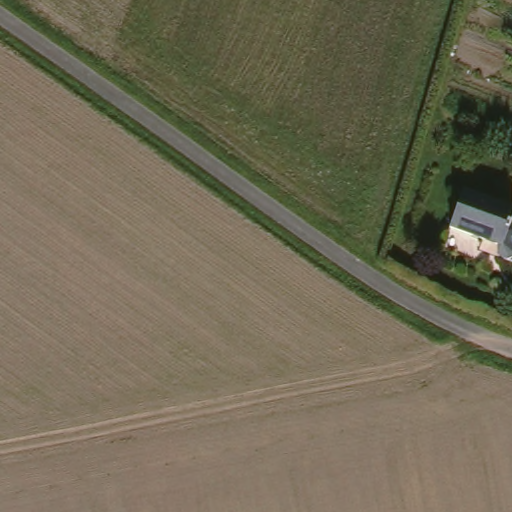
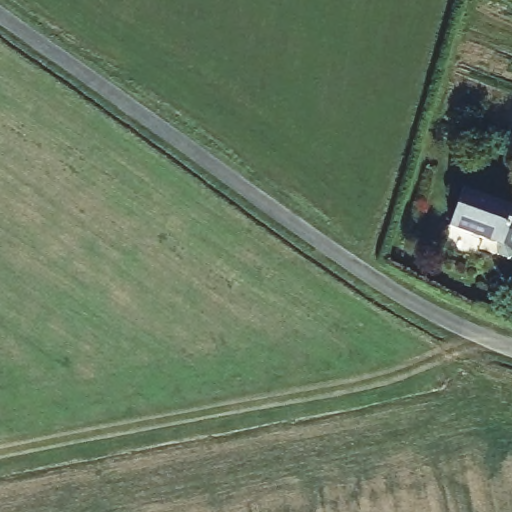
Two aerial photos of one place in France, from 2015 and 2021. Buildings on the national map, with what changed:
unchanged [(489,194),(486,203),(512,212),(512,252),(470,238),(475,224),(461,218),(472,189),(489,194)]

